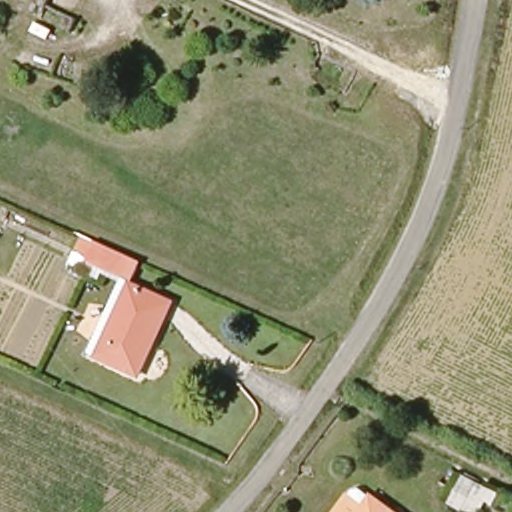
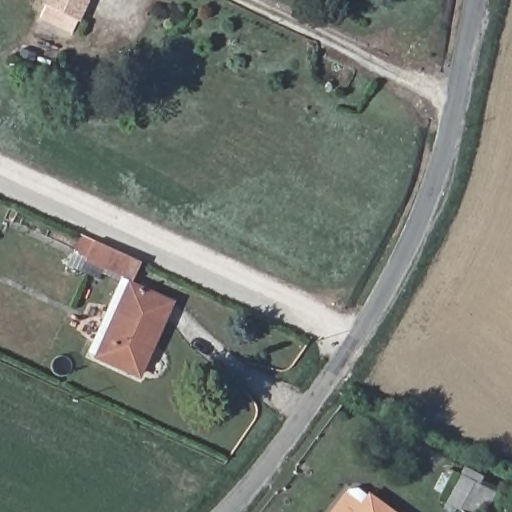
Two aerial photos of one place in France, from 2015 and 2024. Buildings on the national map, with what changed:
new [(80,22),(77,20),(71,34),(40,19),(45,5),(42,4),(44,0),(89,0),(80,22)]
unchanged [(138,259),(130,277),(74,250),(82,234),(138,259)]
unchanged [(130,282),(170,301),(137,373),(97,354),(130,282)]
unchanged [(357,501),(366,487),(399,512),(325,512),(342,485),(357,501)]

